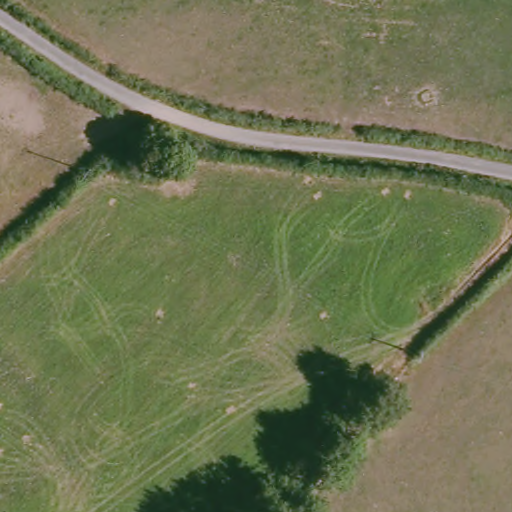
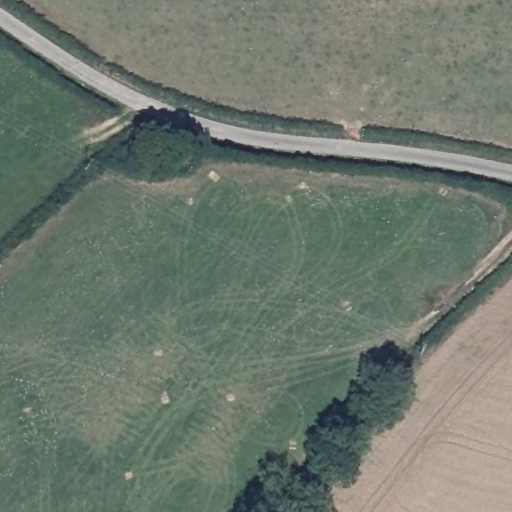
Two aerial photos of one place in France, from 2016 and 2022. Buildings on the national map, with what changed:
[]

